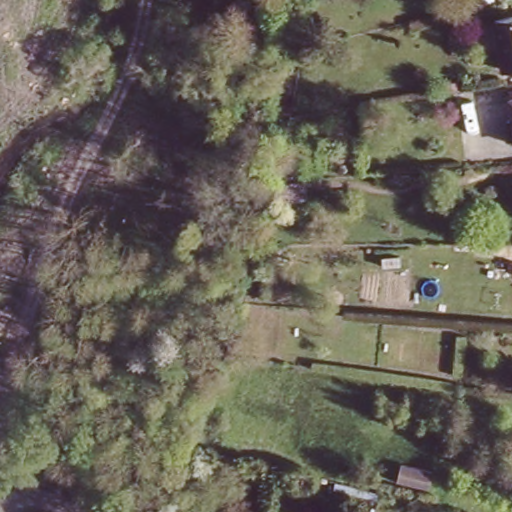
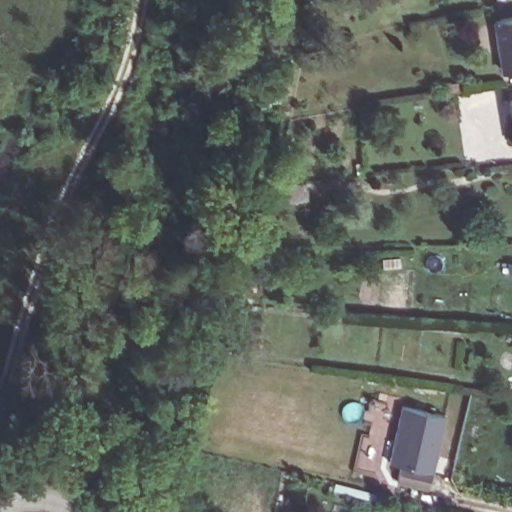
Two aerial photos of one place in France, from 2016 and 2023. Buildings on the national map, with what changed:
unchanged [(502,15),(512,13),(512,64),(509,65),(502,15)]
unchanged [(274,183),(310,180),(310,196),(270,202),(274,183)]
new [(389,460),(402,406),(446,415),(433,473),(429,489),(396,480),(401,465),(389,460)]
demolished [(401,465),(433,473),(429,489),(396,480),(401,465)]

